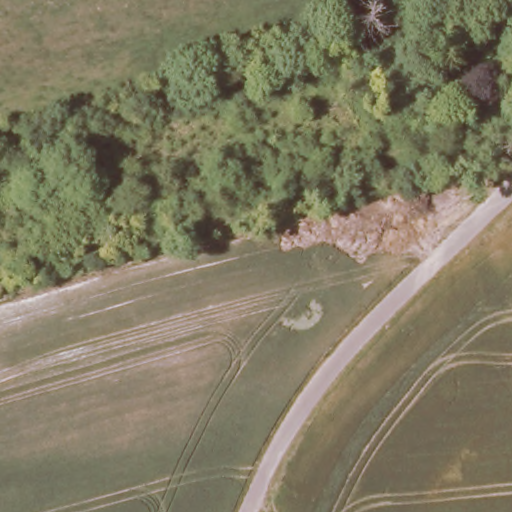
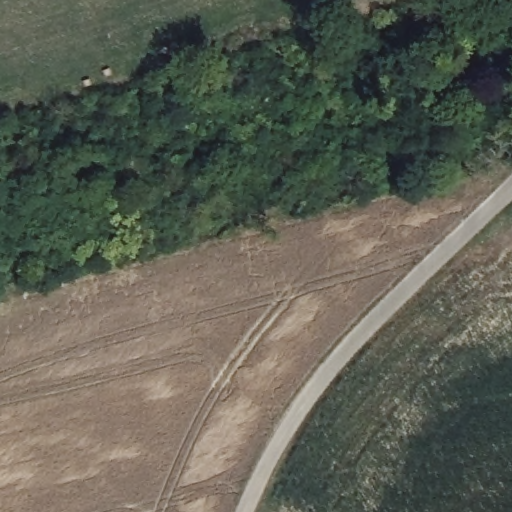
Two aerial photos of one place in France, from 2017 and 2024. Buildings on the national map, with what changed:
unchanged [(512,18),(512,35),(483,44),(478,26),(512,16),(512,18)]

